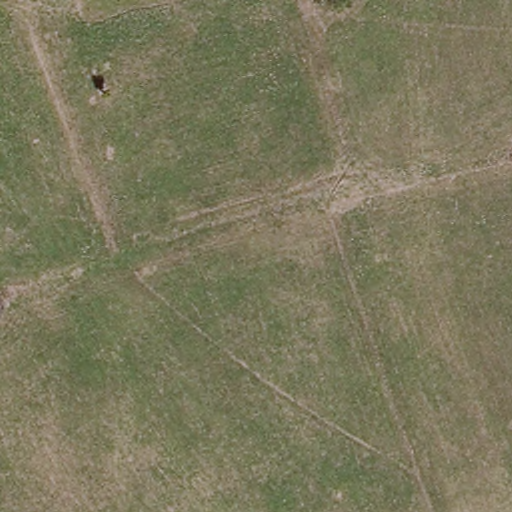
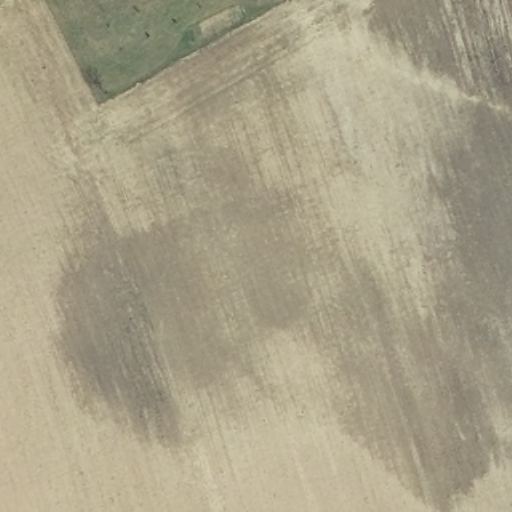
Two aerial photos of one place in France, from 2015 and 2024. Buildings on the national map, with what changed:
[]

